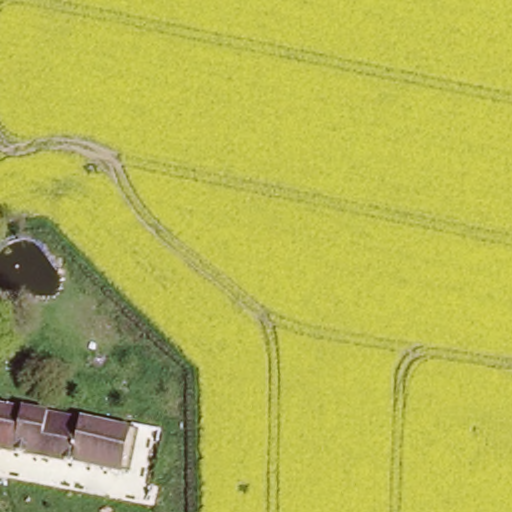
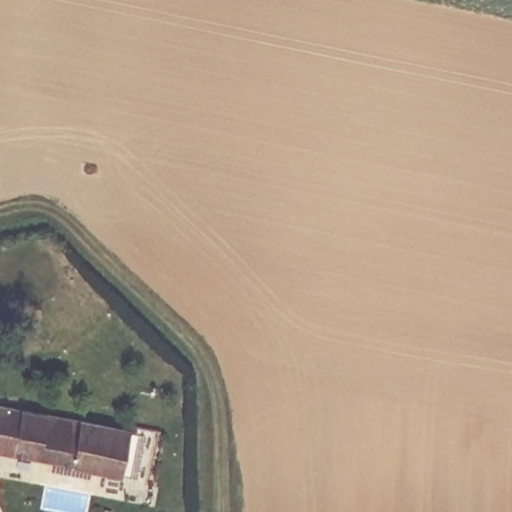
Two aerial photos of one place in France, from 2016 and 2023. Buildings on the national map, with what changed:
unchanged [(35,459),(0,452),(0,405),(46,414),(35,459)]
unchanged [(130,430),(121,475),(35,459),(46,414),(130,430)]

